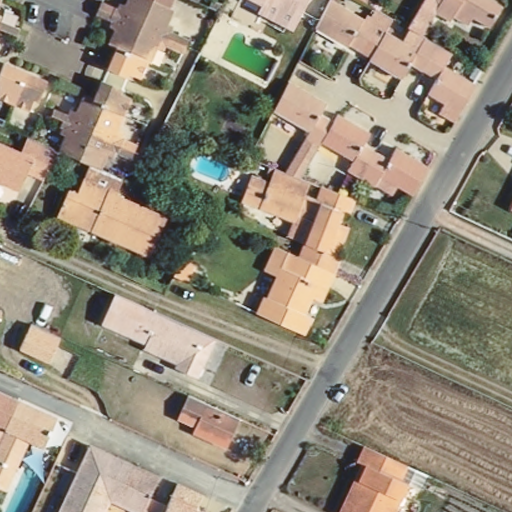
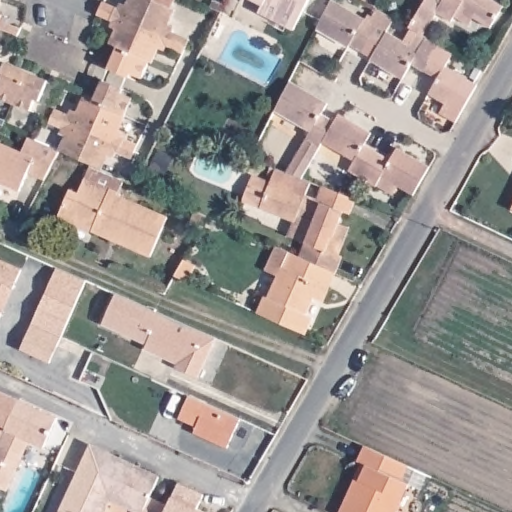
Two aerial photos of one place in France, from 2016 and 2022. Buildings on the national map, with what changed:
unchanged [(167,29),(174,31),(171,37),(174,39),(188,45),(182,59),(169,52),(165,50),(162,56),(157,54),(151,67),(149,66),(141,82),(131,78),(130,81),(110,72),(119,53),(110,50),(117,34),(112,31),(114,26),(98,20),(104,7),(120,14),(122,7),(127,10),(132,0),(176,0),(171,13),(174,15),(167,29)]
unchanged [(293,35),(260,17),(264,7),(250,0),(311,0),(293,35)]
unchanged [(455,23),(452,28),(439,20),(426,43),(408,32),(428,0),(487,0),(505,10),(491,34),(475,24),(470,32),(455,23)]
unchanged [(446,109),(428,99),(437,85),(411,71),(403,85),(371,65),(372,62),(365,57),(351,50),(350,52),(316,33),(331,4),(370,26),(377,14),(393,24),(386,37),(418,56),(426,43),(452,59),(453,59),(445,72),(477,90),(475,93),(461,118),(455,127),(441,119),(446,109)]
unchanged [(16,30),(12,37),(0,32),(0,24),(16,30)]
unchanged [(44,97),(38,95),(33,107),(17,100),(2,95),(8,83),(2,80),(12,60),(53,76),(44,97)]
unchanged [(67,135),(62,134),(65,127),(62,126),(64,120),(54,115),(57,109),(70,115),(72,110),(77,112),(84,97),(95,101),(104,80),(124,89),(122,93),(133,98),(121,126),(127,129),(124,135),(123,136),(140,144),(134,157),(117,149),(116,150),(113,156),(110,155),(104,170),(91,165),(60,150),(67,135)]
unchanged [(376,190),(349,175),(355,166),(322,147),(301,183),(292,179),(289,178),(285,176),(308,136),(273,116),(288,86),(327,109),(321,120),(333,127),(338,120),(371,139),(363,151),(389,166),(397,154),(428,172),(412,200),(397,191),(392,200),(376,190)]
unchanged [(22,152),(29,137),(60,150),(45,179),(28,172),(20,190),(0,182),(0,142),(22,152)]
unchanged [(117,195),(167,216),(150,256),(58,216),(70,190),(78,194),(91,165),(104,170),(125,180),(117,195)]
unchanged [(345,240),(337,260),(341,261),(335,277),(332,276),(322,272),(298,261),(303,247),(286,241),(292,225),(242,205),(250,185),(252,181),(269,188),(276,173),(285,176),(289,178),(292,179),(301,183),(311,186),(305,199),(316,204),(322,191),(338,198),(355,205),(349,220),(342,217),(338,227),(348,231),(345,240)]
unchanged [(199,230),(189,225),(197,211),(207,216),(199,230)]
unchanged [(312,303),(305,318),(313,321),(304,340),(256,318),(262,301),(267,303),(277,280),(265,275),(275,251),(298,261),(322,272),(332,276),(335,277),(327,294),(321,307),(312,303)]
new [(0,307),(0,258),(24,268),(6,310),(0,307)]
unchanged [(188,282),(173,276),(182,259),(197,265),(188,282)]
new [(87,280),(63,336),(35,323),(58,267),(87,280)]
unchanged [(177,373),(179,369),(144,353),(147,347),(137,343),(103,328),(116,298),(154,315),(216,343),(196,381),(177,373)]
unchanged [(6,310),(0,323),(0,307),(6,310)]
demolished [(66,337),(53,364),(22,350),(35,323),(66,337)]
new [(53,364),(22,350),(35,323),(66,337),(53,364)]
unchanged [(45,449),(29,442),(7,493),(0,491),(0,394),(57,418),(45,449)]
unchanged [(227,453),(194,438),(196,432),(179,424),(189,400),(191,401),(240,424),(227,453)]
unchanged [(343,512),(360,476),(364,478),(370,465),(362,461),(370,445),(432,475),(425,489),(413,483),(400,512),(343,512)]
unchanged [(142,512),(140,512),(110,498),(104,512),(60,512),(90,446),(111,455),(158,477),(148,500),(142,512)]
unchanged [(197,510),(201,512),(142,512),(148,500),(167,507),(177,485),(204,496),(197,510)]

